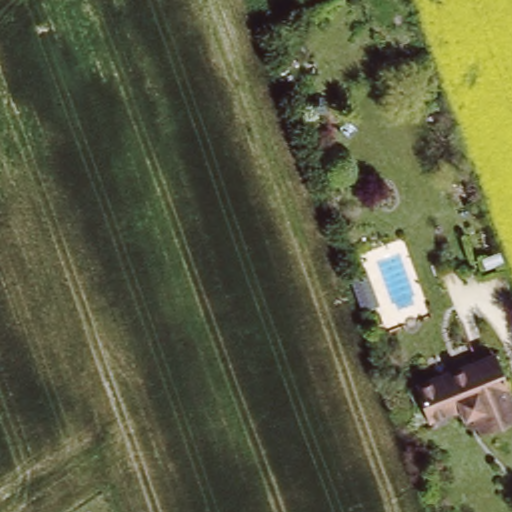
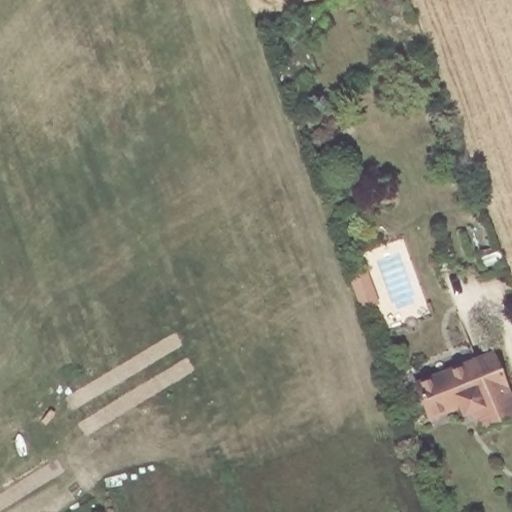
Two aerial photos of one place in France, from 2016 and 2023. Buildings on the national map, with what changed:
unchanged [(490,349),(512,404),(512,413),(480,425),(472,406),(460,411),(456,401),(427,413),(414,379),(490,349)]

